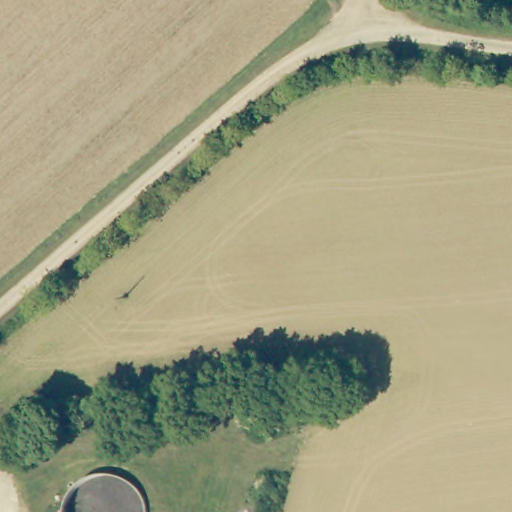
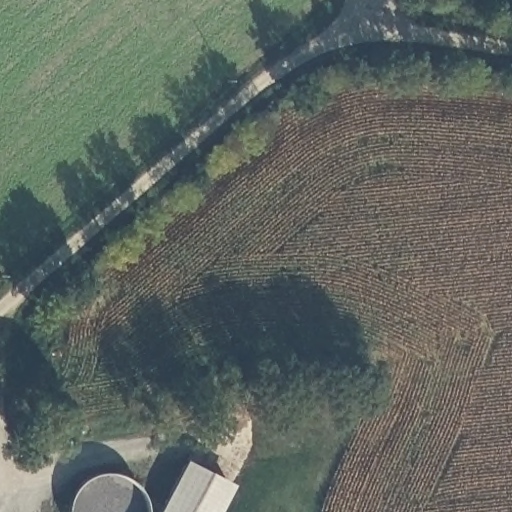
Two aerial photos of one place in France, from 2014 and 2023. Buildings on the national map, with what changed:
new [(187,459),(238,485),(224,512),(160,512),(187,459)]

